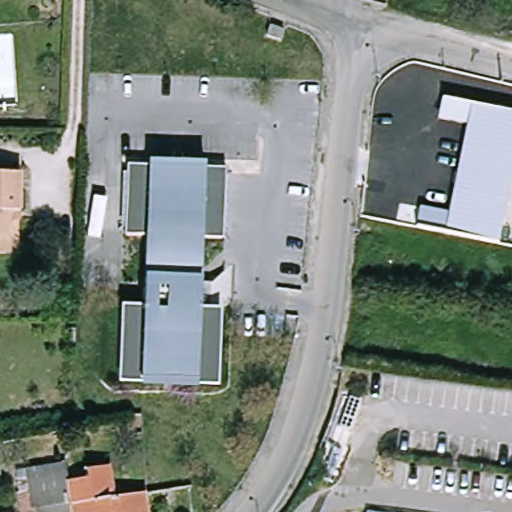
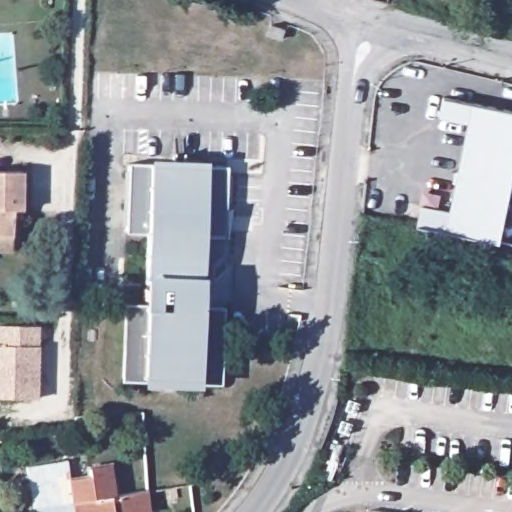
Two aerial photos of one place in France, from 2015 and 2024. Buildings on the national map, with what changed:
unchanged [(291,30),(288,40),(274,35),(277,25),(291,30)]
unchanged [(498,244),(418,229),(422,205),(449,212),(467,124),(440,119),(444,101),(512,113),(512,178),(498,244)]
unchanged [(130,302),(150,302),(151,274),(153,274),(153,232),(128,232),(130,164),(227,165),(227,234),(206,233),(206,302),(226,302),(225,376),(130,375),(130,302)]
unchanged [(0,172),(22,172),(21,212),(21,221),(12,221),(13,238),(11,256),(0,256),(0,172)]
new [(38,346),(38,398),(0,398),(0,325),(38,326),(38,346)]
unchanged [(146,489),(149,512),(39,512),(39,510),(33,508),(28,465),(69,460),(72,478),(89,475),(88,468),(108,465),(113,495),(140,490),(146,489)]

